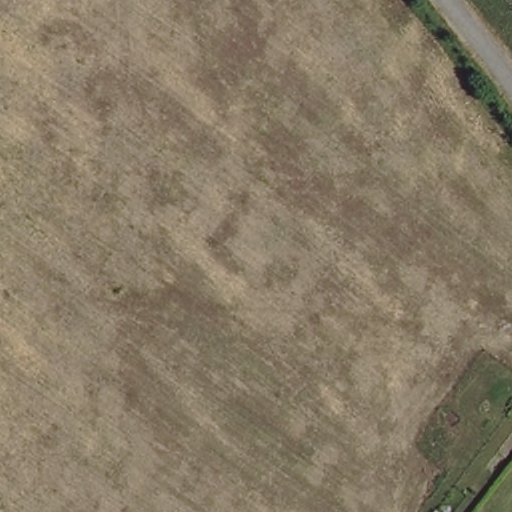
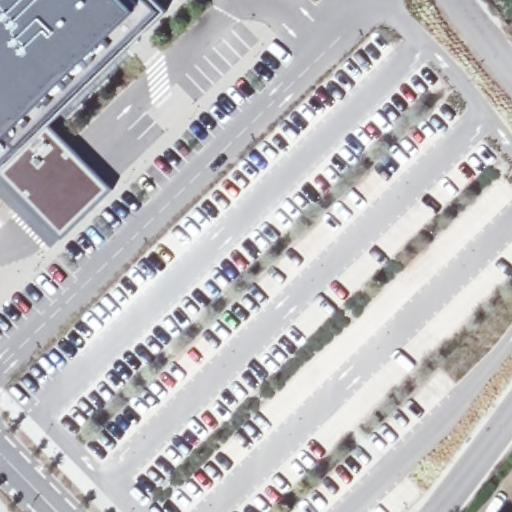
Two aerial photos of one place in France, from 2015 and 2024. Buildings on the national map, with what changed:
new [(41,122),(0,159),(0,0),(144,0),(157,12),(41,122)]
new [(41,122),(106,187),(57,238),(0,180),(0,159),(41,122)]

